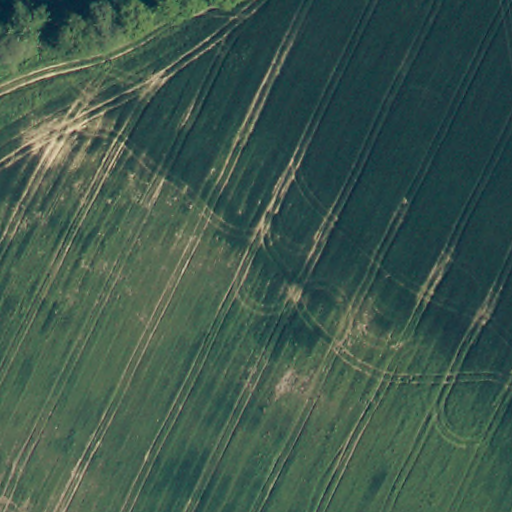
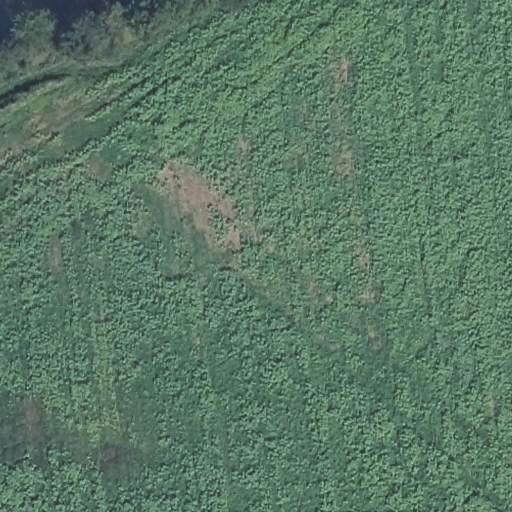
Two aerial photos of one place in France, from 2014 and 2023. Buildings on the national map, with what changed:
[]

